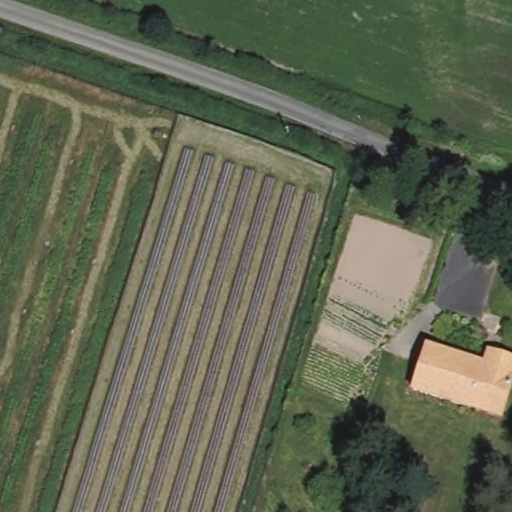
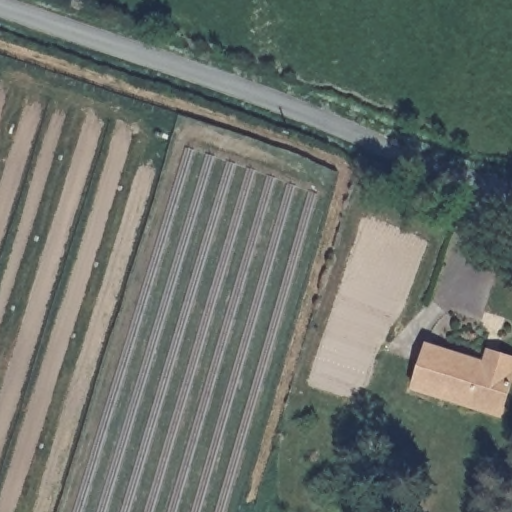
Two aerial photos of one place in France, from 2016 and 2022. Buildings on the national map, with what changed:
unchanged [(468,407),(417,390),(431,346),(480,362),(486,351),(498,355),(512,360),(512,375),(501,407),(498,418),(468,407)]

